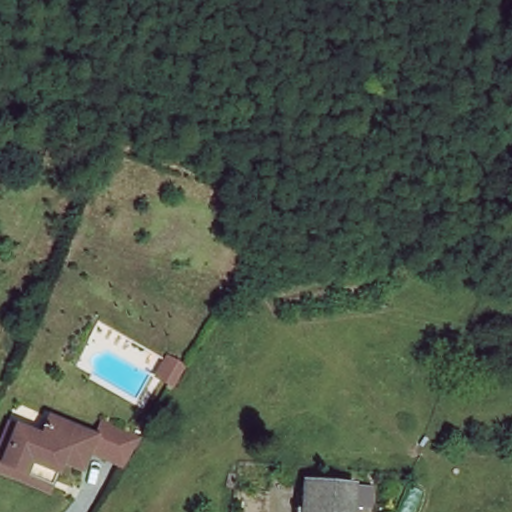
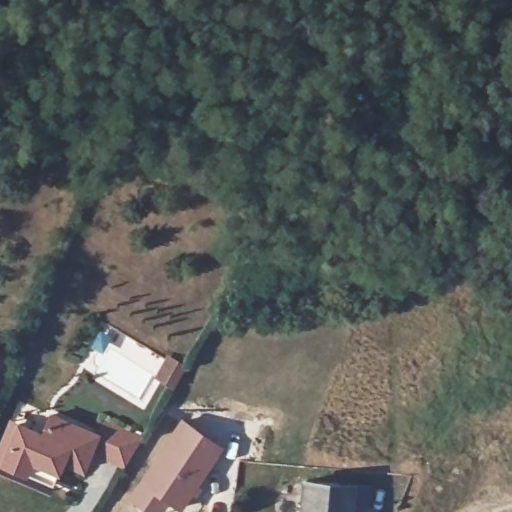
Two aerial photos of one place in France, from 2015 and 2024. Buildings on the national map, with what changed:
unchanged [(35,461),(30,472),(4,462),(20,423),(43,432),(50,411),(101,429),(93,451),(88,465),(68,458),(63,470),(35,461)]
unchanged [(105,418),(137,432),(125,464),(93,451),(101,429),(105,418)]
new [(168,502),(162,512),(148,512),(128,498),(181,420),(223,447),(181,510),(168,502)]
unchanged [(30,472),(35,461),(63,470),(56,488),(0,468),(0,457),(15,422),(20,423),(4,462),(30,472)]
unchanged [(334,491),(356,492),(355,512),(303,512),(304,490),(334,491)]

